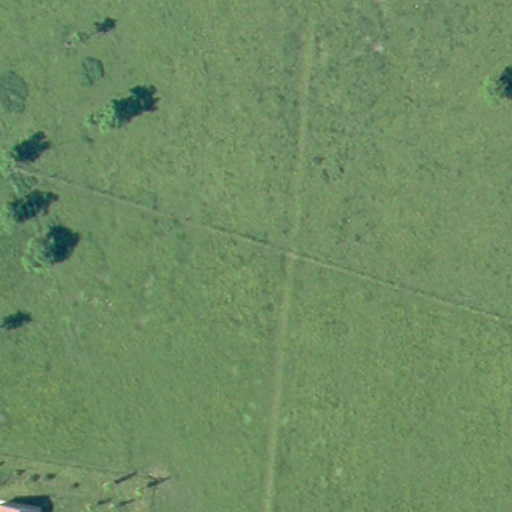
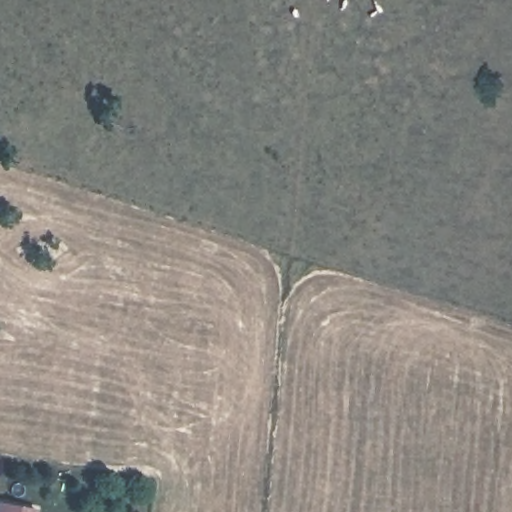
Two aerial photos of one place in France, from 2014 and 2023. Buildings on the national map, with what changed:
unchanged [(38,512),(0,512),(0,504),(38,511),(38,512)]

